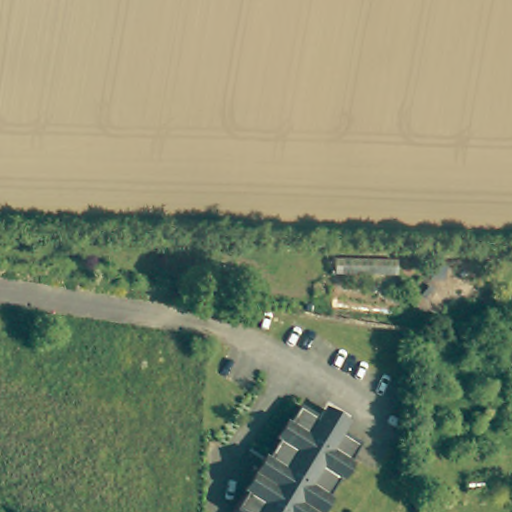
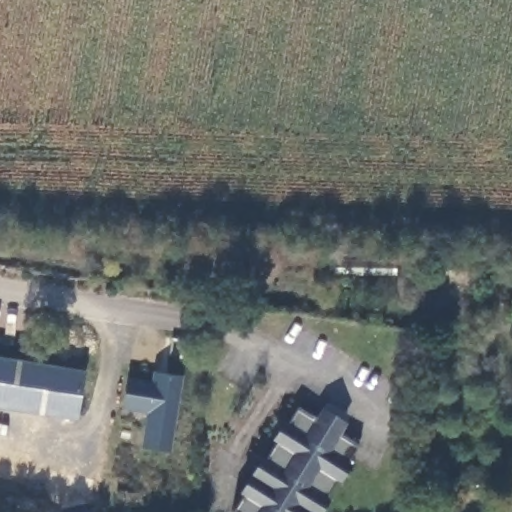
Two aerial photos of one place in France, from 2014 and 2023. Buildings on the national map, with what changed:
new [(86,371),(78,420),(0,408),(0,357),(86,371)]
new [(152,380),(154,371),(182,376),(171,451),(142,447),(146,413),(122,409),(127,376),(152,380)]
unchanged [(226,511),(237,491),(235,490),(256,456),(258,457),(269,440),(267,438),(278,421),(280,422),(291,404),(310,416),(315,408),(338,422),(333,431),(352,442),(338,466),(342,460),(344,462),(333,479),(331,477),(320,495),(322,497),(313,512),(228,512),(226,511)]

